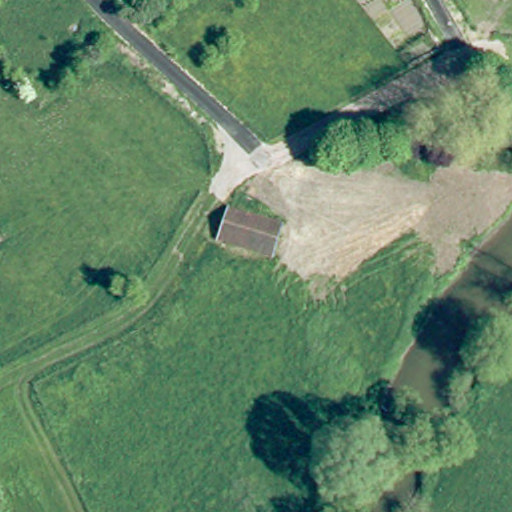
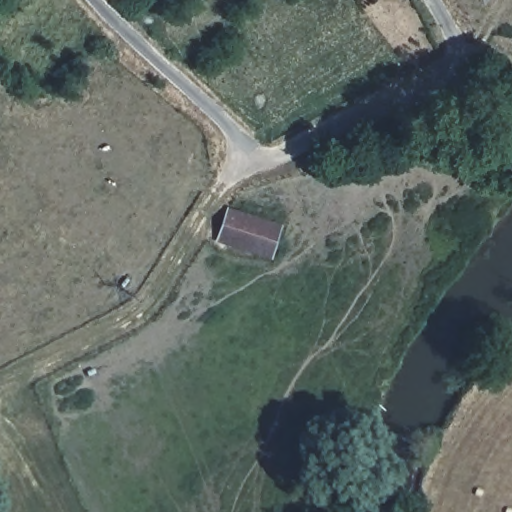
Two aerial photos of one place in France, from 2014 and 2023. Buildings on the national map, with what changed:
unchanged [(275,244),(270,259),(215,241),(227,208),(282,224),(275,244)]

